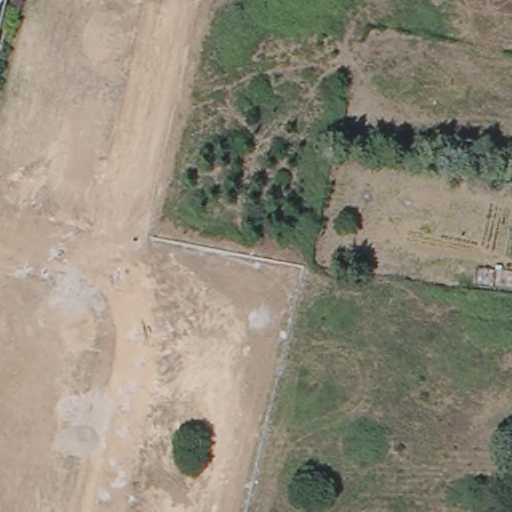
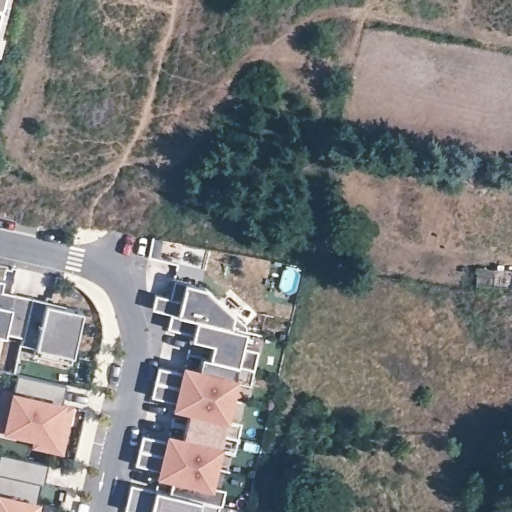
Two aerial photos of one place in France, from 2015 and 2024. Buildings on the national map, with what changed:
unchanged [(0,11),(0,0),(3,0),(0,11)]
new [(3,280),(0,290),(12,293),(30,297),(21,336),(4,332),(3,335),(0,335),(0,280),(3,280)]
new [(153,295),(167,298),(172,280),(203,288),(245,327),(244,332),(168,314),(149,309),(153,295)]
new [(19,344),(21,336),(30,297),(45,300),(63,304),(63,307),(81,311),(71,355),(70,363),(32,354),(34,347),(19,344)]
new [(168,314),(244,332),(240,351),(254,354),(251,370),(236,367),(207,359),(210,345),(189,341),(190,336),(164,331),(168,314)]
new [(156,369),(181,375),(182,370),(196,373),(200,357),(207,359),(236,367),(251,370),(247,386),(233,382),(229,400),(153,382),(156,369)]
new [(2,391),(12,393),(16,374),(65,385),(58,413),(68,415),(60,452),(32,446),(34,437),(0,430),(0,398),(2,391)]
new [(153,382),(229,400),(224,420),(239,423),(235,439),(184,426),(187,412),(173,409),(175,404),(149,398),(153,382)]
new [(140,437),(166,443),(167,438),(180,441),(184,426),(235,439),(232,454),(217,451),(213,469),(136,452),(140,437)]
new [(136,452),(213,469),(208,488),(223,491),(219,506),(168,494),(171,480),(158,477),(159,472),(133,466),(136,452)]
new [(44,464),(40,483),(37,483),(33,502),(30,512),(0,512),(0,454),(44,464)]
new [(125,512),(123,511),(129,485),(217,505),(215,512),(125,512)]

